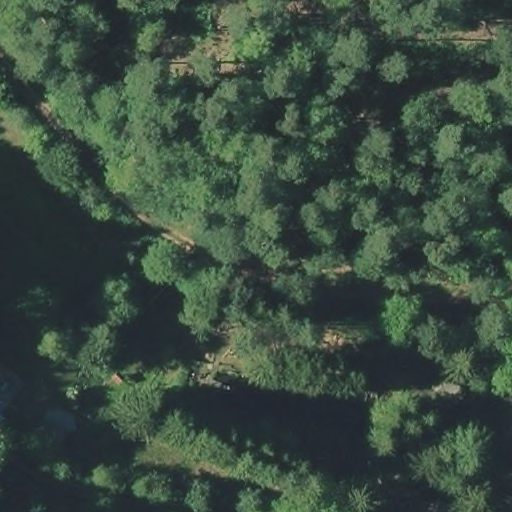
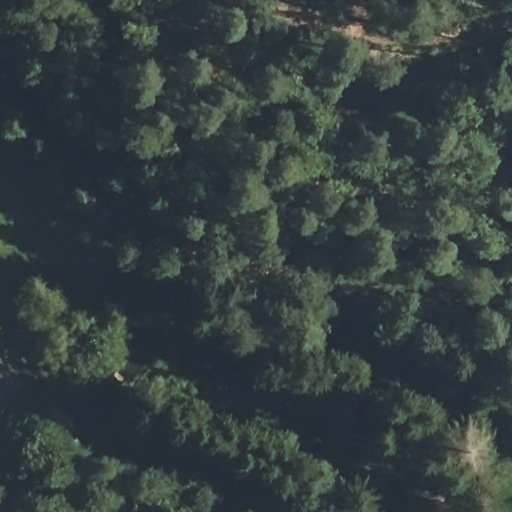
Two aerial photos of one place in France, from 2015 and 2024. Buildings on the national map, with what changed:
unchanged [(412,512),(411,501),(449,499),(450,512),(412,512)]

